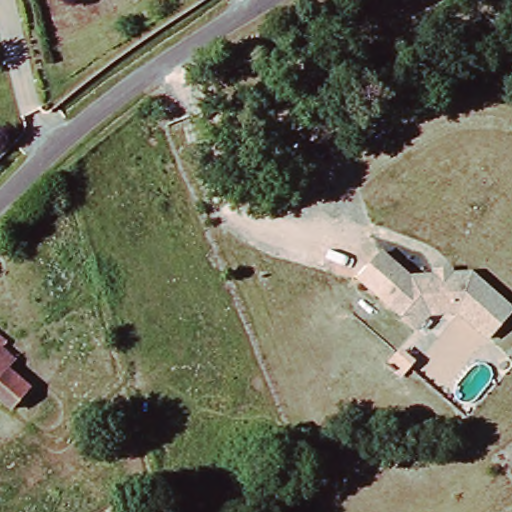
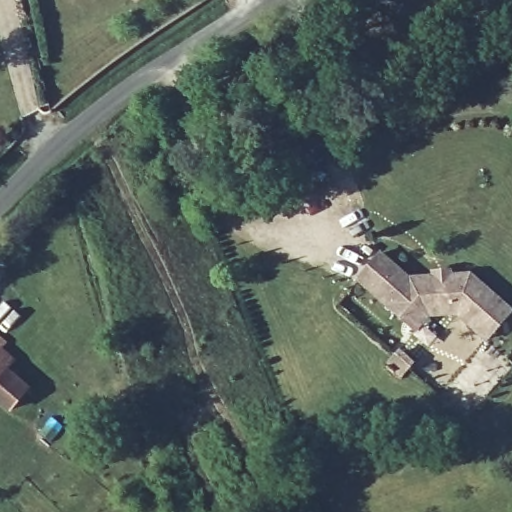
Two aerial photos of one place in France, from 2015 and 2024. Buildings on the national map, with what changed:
unchanged [(403,319),(359,280),(382,254),(409,279),(436,276),(436,272),(452,271),(452,275),(473,274),(512,308),(512,313),(489,340),(459,313),(430,316),(417,331),(403,319)]
unchanged [(0,404),(0,353),(9,360),(1,368),(24,387),(6,409),(0,404)]

